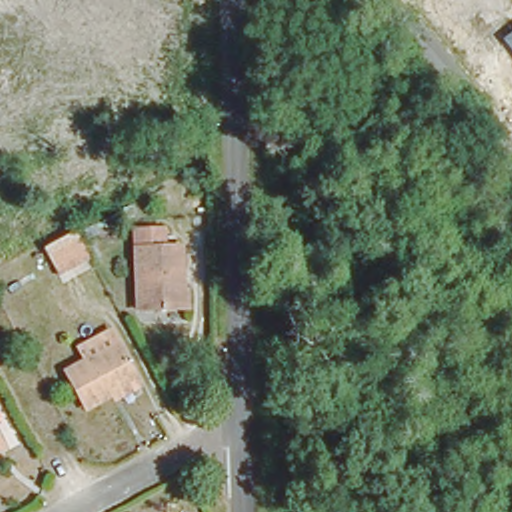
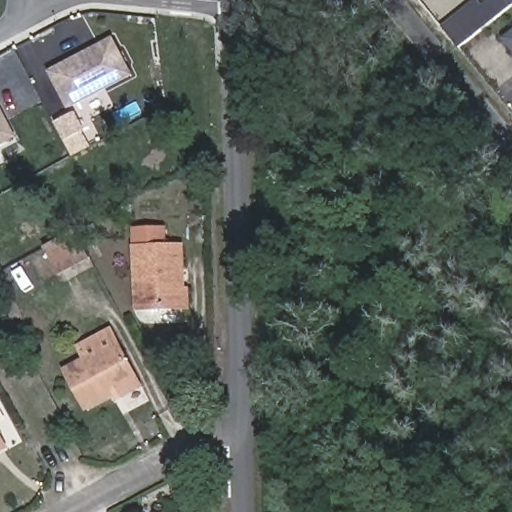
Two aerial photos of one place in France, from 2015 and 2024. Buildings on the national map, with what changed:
new [(458,49),(442,28),(477,0),(478,0),(482,6),(489,0),(507,0),(512,7),(458,49)]
unchanged [(503,41),(512,33),(512,52),(503,41)]
new [(68,111),(47,72),(114,37),(134,76),(68,111)]
new [(0,107),(17,139),(0,148),(0,107)]
unchanged [(39,250),(71,230),(92,265),(51,288),(39,250)]
unchanged [(175,241),(177,280),(180,280),(180,299),(134,301),(132,241),(175,241)]
unchanged [(119,339),(137,375),(90,400),(72,364),(119,339)]
unchanged [(0,438),(0,431),(3,437),(0,438)]

